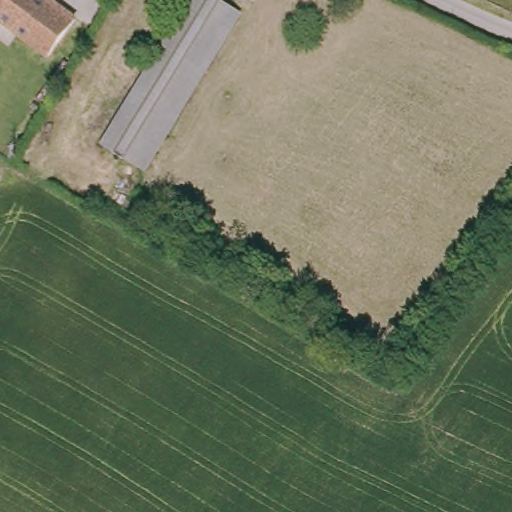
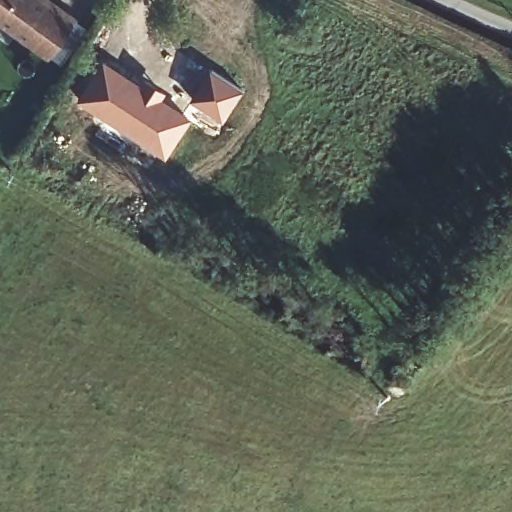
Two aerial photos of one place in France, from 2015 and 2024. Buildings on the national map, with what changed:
unchanged [(48,60),(0,25),(0,0),(53,0),(78,19),(48,60)]
demolished [(232,6),(144,174),(107,153),(189,0),(221,0),(232,6)]
new [(141,85),(145,79),(167,92),(164,97),(193,116),(167,159),(78,99),(104,59),(141,85)]
new [(243,90),(222,121),(190,99),(210,68),(243,90)]

